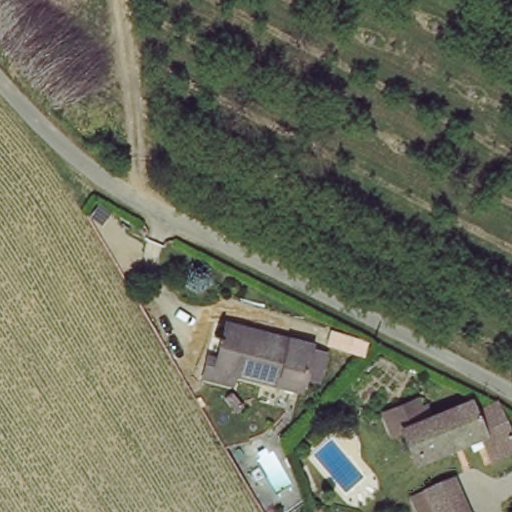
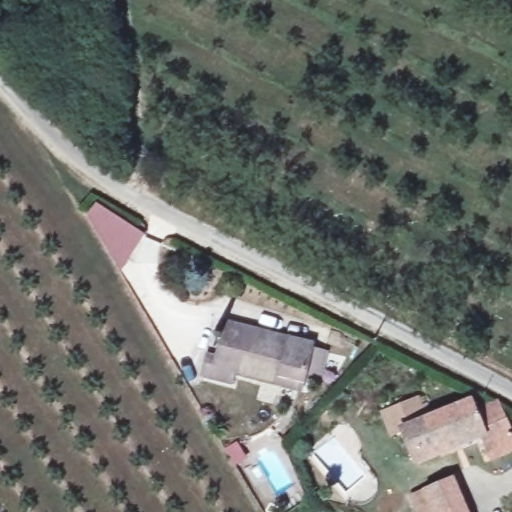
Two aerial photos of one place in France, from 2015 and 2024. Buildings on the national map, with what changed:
new [(90,212),(99,202),(144,235),(120,268),(90,212)]
unchanged [(276,389),(228,384),(229,375),(210,373),(214,333),(243,337),(278,341),(305,345),(301,381),(301,392),(276,389)]
unchanged [(417,400),(423,416),(470,400),(474,409),(498,405),(512,437),(512,456),(490,465),(475,445),(415,465),(403,432),(390,439),(376,417),(417,400)]
unchanged [(457,481),(468,512),(413,512),(409,500),(457,481)]

